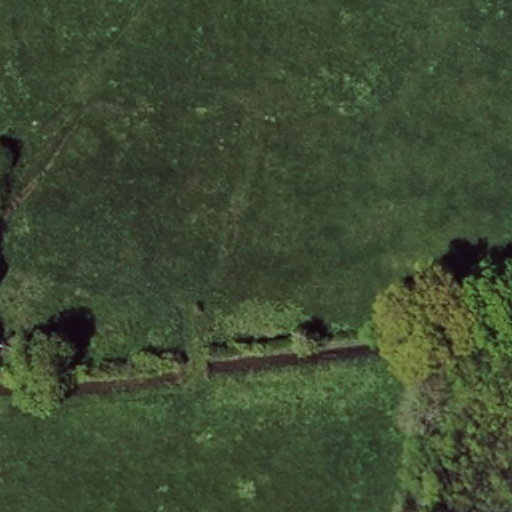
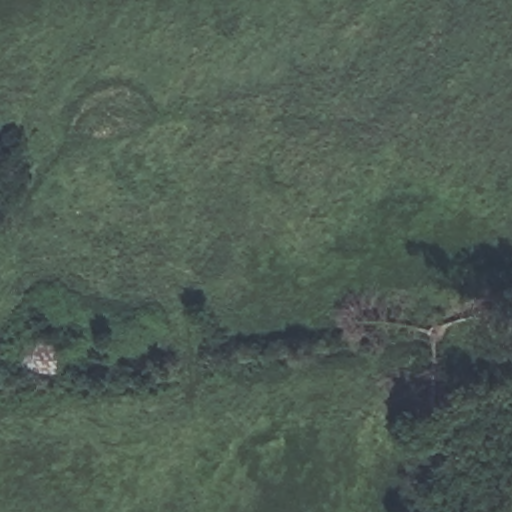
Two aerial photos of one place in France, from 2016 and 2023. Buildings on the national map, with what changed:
unchanged [(58,330),(55,358),(31,358),(30,331),(58,330)]

